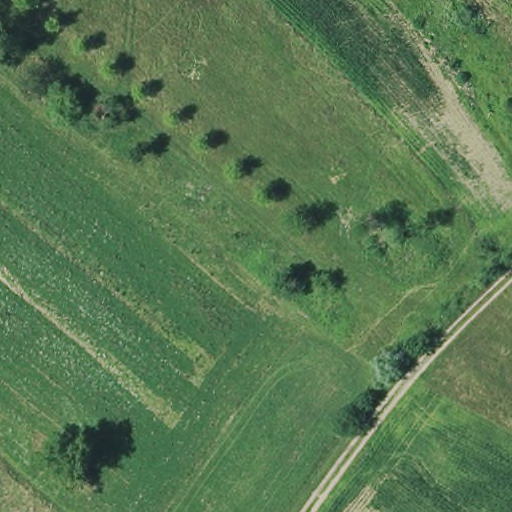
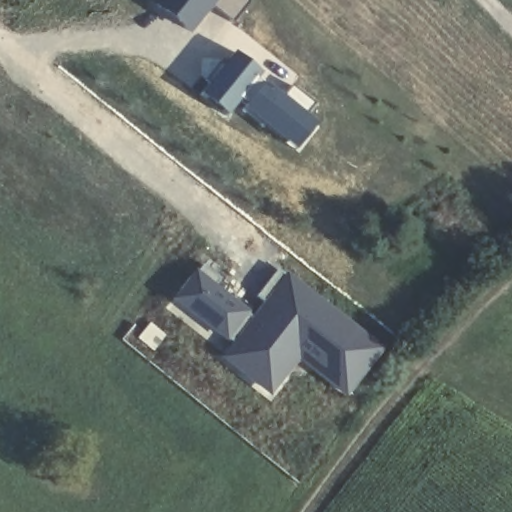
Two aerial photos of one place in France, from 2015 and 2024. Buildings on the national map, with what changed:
new [(233,24),(213,8),(191,34),(157,4),(161,0),(251,0),(251,1),(233,24)]
new [(318,123),(296,150),(240,101),(227,116),(200,93),(236,51),(318,123)]
new [(225,345),(252,313),(260,302),(254,297),(280,265),(313,290),(385,348),(346,399),(297,362),(270,399),(216,358),(225,345)]
new [(197,267),(252,313),(225,345),(168,301),(197,267)]

